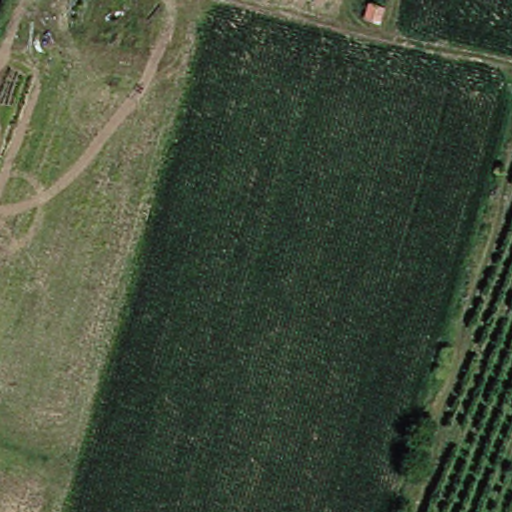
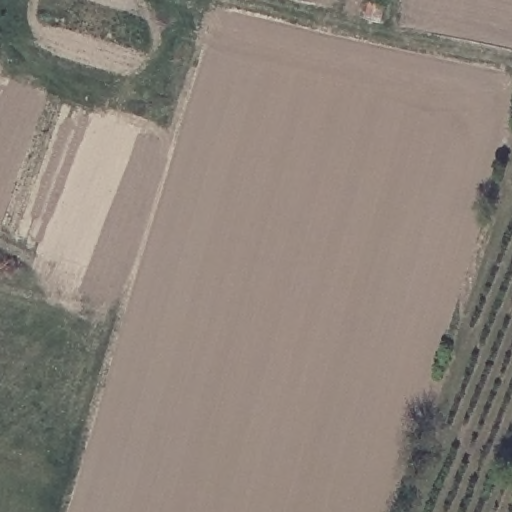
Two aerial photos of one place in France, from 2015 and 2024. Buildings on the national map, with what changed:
unchanged [(381,12),(376,25),(363,20),(367,7),(381,12)]

